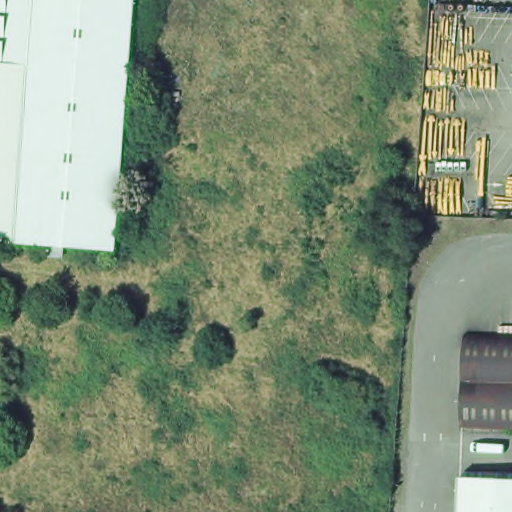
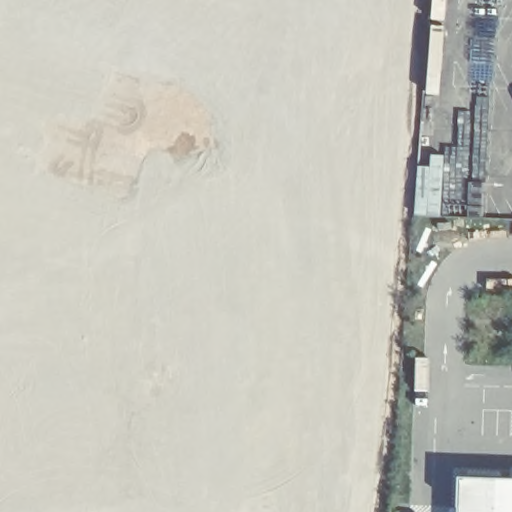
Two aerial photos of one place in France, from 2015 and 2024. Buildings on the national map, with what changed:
demolished [(9,249),(0,248),(0,0),(28,0),(25,33),(9,249)]
demolished [(9,249),(25,33),(28,0),(131,0),(112,258),(9,249)]
demolished [(460,333),(512,338),(512,426),(456,426),(460,333)]
unchanged [(462,475),(512,477),(512,512),(460,512),(462,475)]

